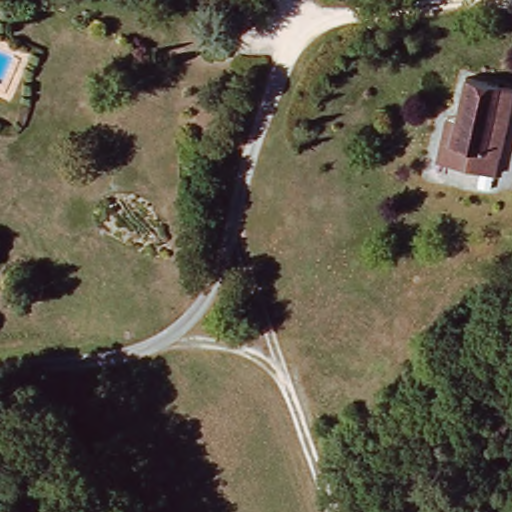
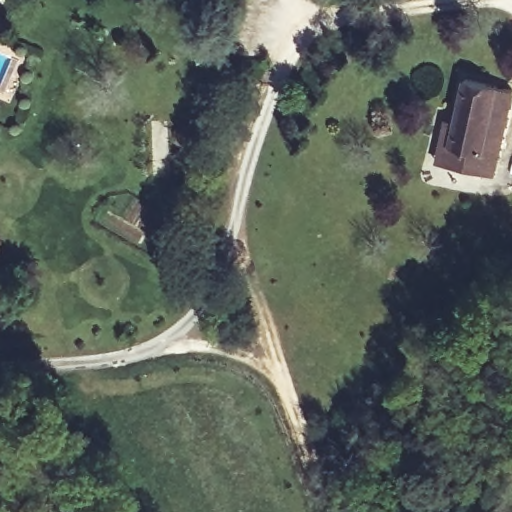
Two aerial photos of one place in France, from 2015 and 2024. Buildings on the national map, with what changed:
unchanged [(505,165),(445,160),(449,117),(460,118),(464,79),(512,82),(505,165)]

